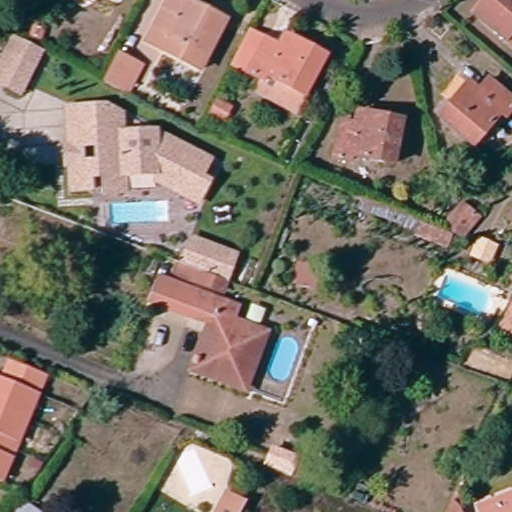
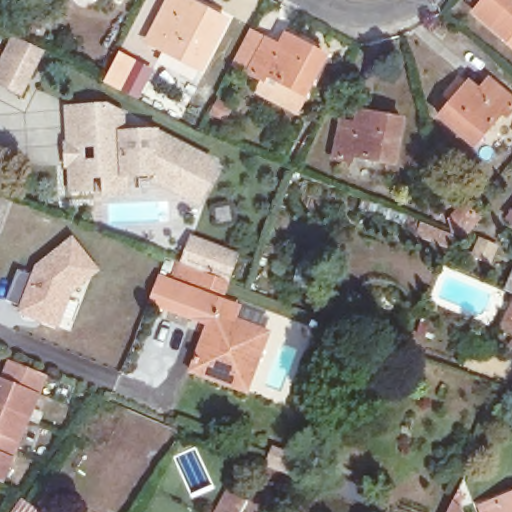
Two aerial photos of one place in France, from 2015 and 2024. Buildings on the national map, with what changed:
unchanged [(191,79),(154,60),(157,52),(140,44),(162,0),(217,29),(191,79)]
unchanged [(499,49),(470,23),(488,0),(512,0),(512,59),(499,49)]
unchanged [(252,92),(260,80),(245,75),(252,62),(234,54),(245,31),(278,46),(285,33),(326,52),(305,93),(295,111),(252,92)]
unchanged [(0,62),(11,38),(41,52),(21,94),(0,83),(0,62)]
unchanged [(99,81),(114,53),(132,62),(144,67),(130,95),(120,90),(99,81)]
unchanged [(462,83),(475,93),(489,78),(512,98),(512,108),(505,118),(497,113),(470,145),(435,115),(462,83)]
unchanged [(72,169),(66,169),(65,146),(67,146),(66,111),(91,110),(94,110),(96,145),(106,150),(107,165),(97,165),(73,166),(72,167),(72,169)]
unchanged [(156,182),(155,175),(125,177),(125,195),(102,196),(101,179),(92,179),(94,192),(74,194),(72,169),(72,167),(73,166),(97,165),(107,165),(106,150),(96,145),(94,110),(101,110),(120,117),(121,135),(153,133),(210,159),(201,176),(210,180),(200,201),(180,193),(174,190),(156,182)]
unchanged [(347,159),(345,166),(327,164),(334,125),(351,128),(353,113),(400,120),(392,167),(347,159)]
unchanged [(475,218),(451,232),(449,231),(443,217),(456,200),(467,209),(465,210),(475,218)]
unchanged [(510,212),(512,210),(512,215),(510,212)]
unchanged [(197,280),(202,270),(185,263),(190,249),(195,237),(225,249),(240,254),(230,280),(220,276),(215,286),(197,280)]
new [(12,270),(27,276),(30,267),(68,239),(93,270),(66,293),(53,327),(15,313),(18,307),(1,301),(12,270)]
unchanged [(245,388),(192,370),(207,325),(146,305),(150,294),(155,280),(235,307),(230,322),(263,333),(245,388)]
unchanged [(510,296),(512,297),(512,330),(497,323),(510,296)]
unchanged [(9,367),(44,381),(35,402),(0,486),(0,387),(9,367)]
unchanged [(476,499),(492,493),(512,486),(512,512),(481,512),(476,499)]
unchanged [(242,512),(217,512),(227,493),(246,503),(242,512)]
unchanged [(35,512),(8,512),(16,500),(35,512)]
unchanged [(448,503),(457,510),(458,512),(444,512),(448,503)]

